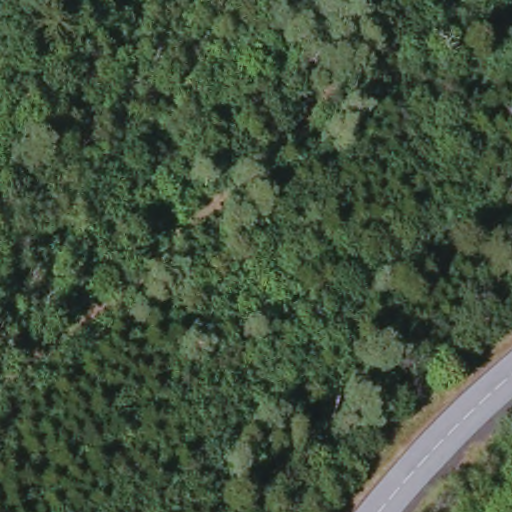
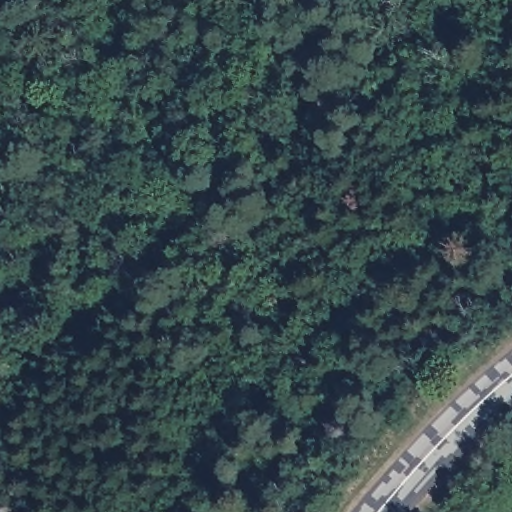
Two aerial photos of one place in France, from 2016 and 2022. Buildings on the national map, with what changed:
[]

